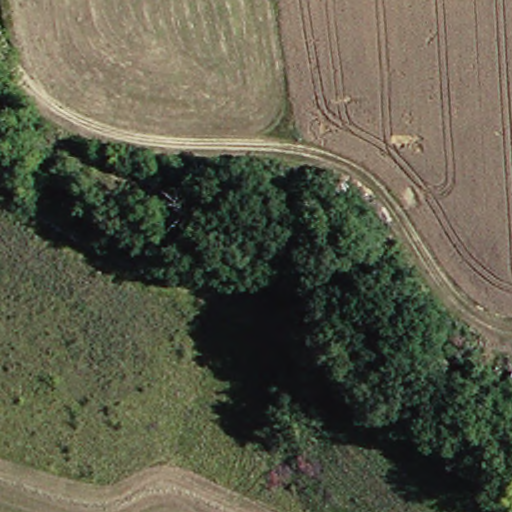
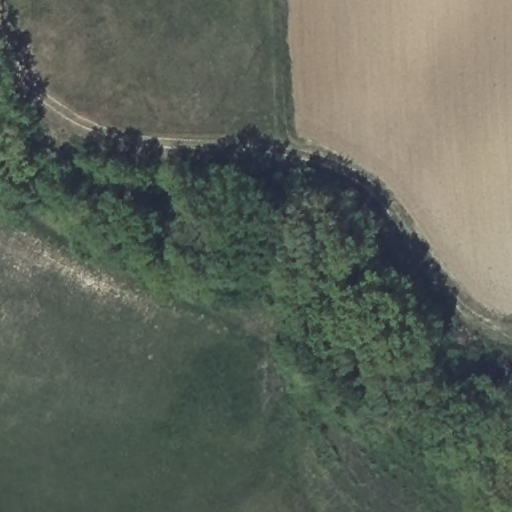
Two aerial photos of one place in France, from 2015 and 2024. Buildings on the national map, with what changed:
unchanged [(512,407),(500,402),(512,381),(512,407)]

